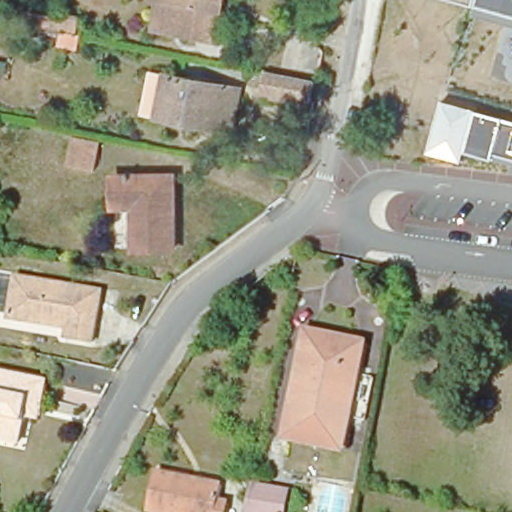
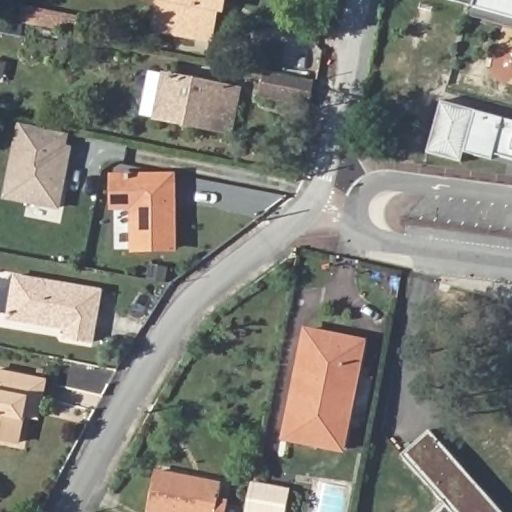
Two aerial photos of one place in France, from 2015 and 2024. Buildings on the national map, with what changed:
unchanged [(157,33),(163,1),(163,0),(223,0),(214,44),(184,39),(157,33)]
unchanged [(512,0),(512,17),(449,0),(512,0)]
unchanged [(32,26),(34,11),(80,18),(75,50),(53,47),(56,31),(32,26)]
unchanged [(216,131),(139,116),(146,75),(223,88),(216,131)]
unchanged [(313,107),(263,98),(267,76),(317,86),(313,107)]
unchanged [(494,160),(467,155),(464,164),(427,155),(442,101),(512,120),(512,160),(496,155),(494,160)]
new [(73,145),(61,210),(3,199),(18,122),(20,122),(67,131),(70,132),(68,145),(73,145)]
demolished [(90,168),(64,163),(70,135),(97,140),(90,168)]
unchanged [(113,179),(174,176),(178,249),(137,250),(135,207),(114,207),(113,179)]
unchanged [(103,282),(94,333),(68,329),(70,318),(56,316),(54,311),(44,310),(40,313),(11,308),(18,268),(103,282)]
unchanged [(424,292),(427,279),(430,272),(444,276),(441,283),(438,296),(424,292)]
unchanged [(287,416),(291,415),(303,354),(300,353),(304,328),(360,338),(356,363),(359,364),(347,427),(342,425),(337,448),(282,438),(287,416)]
unchanged [(22,413),(21,420),(19,420),(15,442),(0,439),(0,371),(42,380),(38,403),(35,416),(22,413)]
new [(402,454),(429,430),(503,512),(434,512),(445,502),(402,454)]
unchanged [(228,512),(148,512),(156,468),(222,482),(217,506),(229,509),(228,512)]
unchanged [(291,495),(288,512),(249,512),(254,487),(291,495)]

